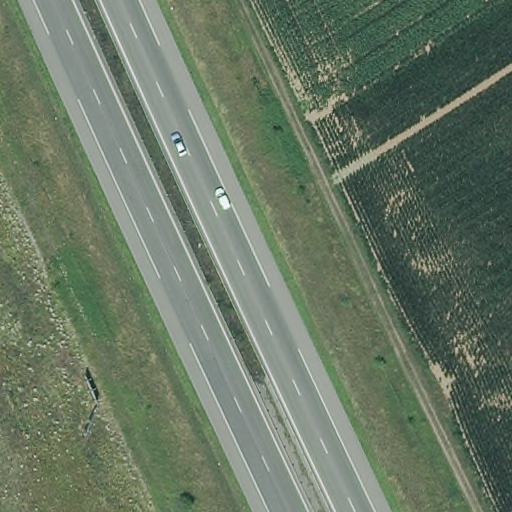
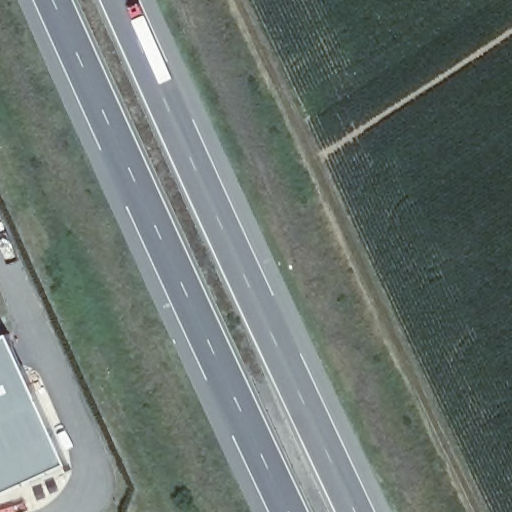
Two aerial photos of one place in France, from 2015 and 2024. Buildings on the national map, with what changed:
new [(0,495),(0,338),(10,333),(69,464),(0,495)]

